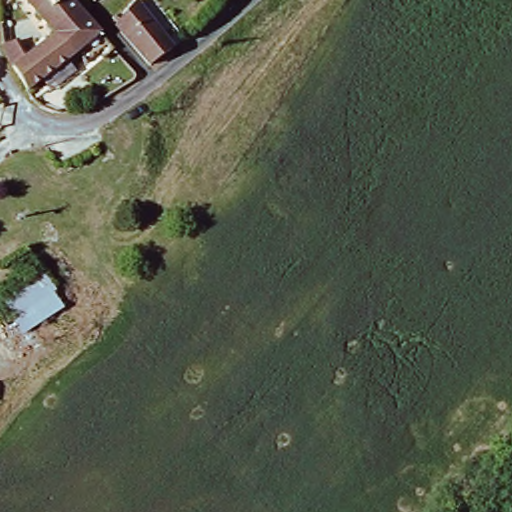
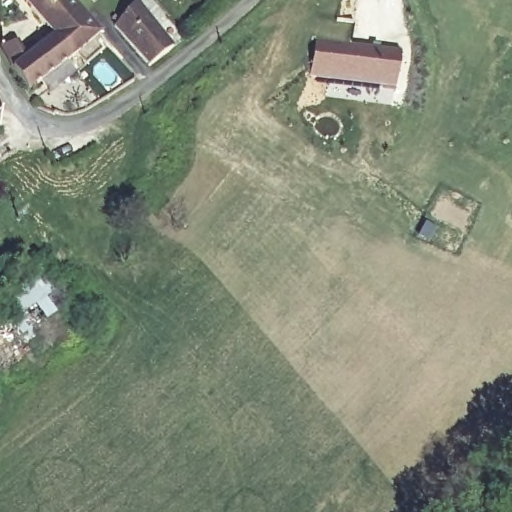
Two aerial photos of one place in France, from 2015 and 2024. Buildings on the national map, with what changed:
unchanged [(57,40),(23,0),(69,0),(109,44),(96,52),(89,47),(35,97),(33,99),(14,72),(6,52),(17,47),(28,63),(57,40)]
unchanged [(146,8),(173,42),(152,59),(125,28),(146,8)]
new [(319,21),(352,25),(349,45),(399,54),(394,91),(310,78),(319,21)]
unchanged [(46,274),(72,308),(25,337),(2,306),(46,274)]

